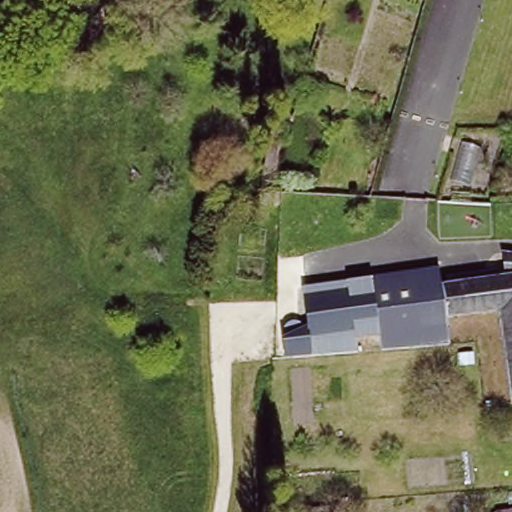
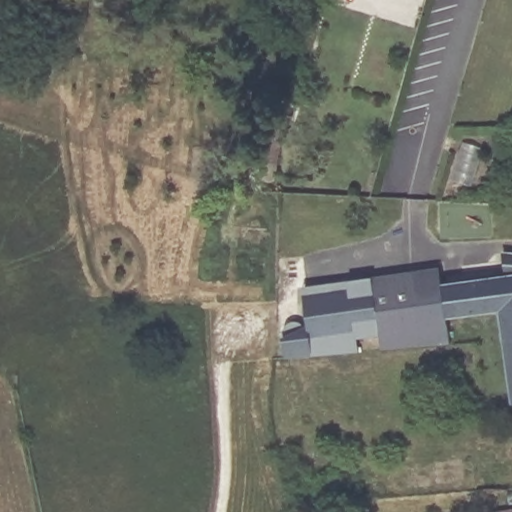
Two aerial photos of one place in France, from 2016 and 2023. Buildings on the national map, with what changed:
unchanged [(441,280),(499,271),(499,254),(512,255),(512,405),(511,405),(496,310),(448,316),(451,341),(383,348),(379,336),(356,337),(357,348),(278,355),(274,316),(303,313),(301,283),(439,267),(441,280)]

